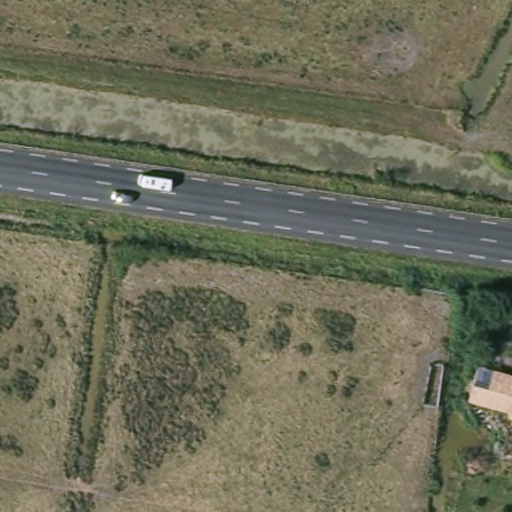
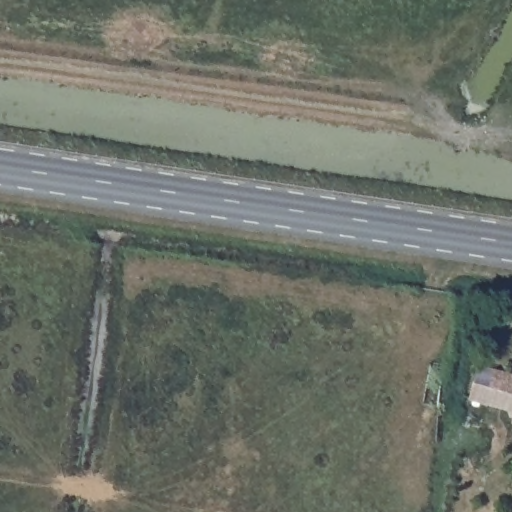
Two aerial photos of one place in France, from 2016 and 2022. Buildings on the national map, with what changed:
unchanged [(481,377),(485,365),(512,375),(512,416),(473,402),(481,377)]
unchanged [(512,416),(512,422),(510,421),(512,416)]

